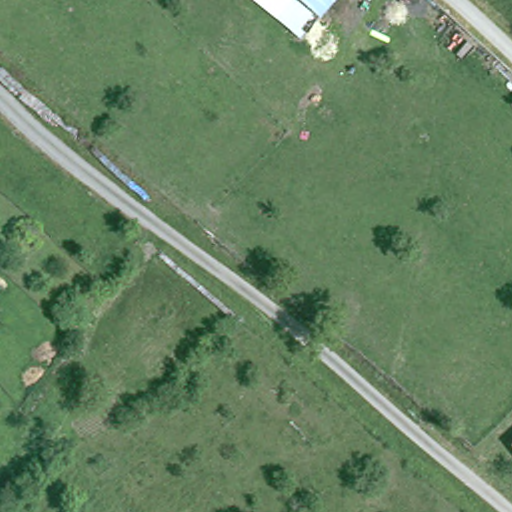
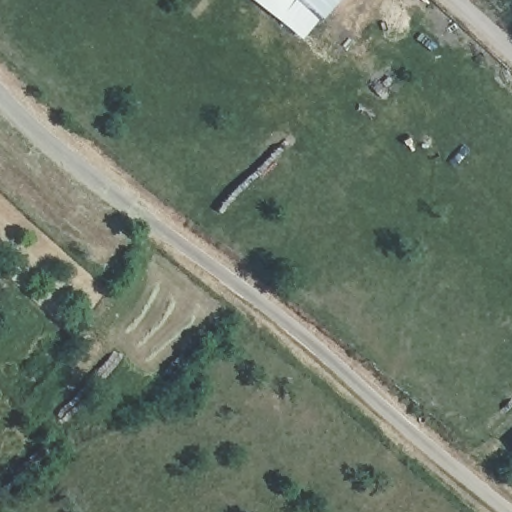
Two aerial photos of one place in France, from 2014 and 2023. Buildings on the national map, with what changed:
unchanged [(323,24),(297,1),(296,0),(344,0),(323,24)]

